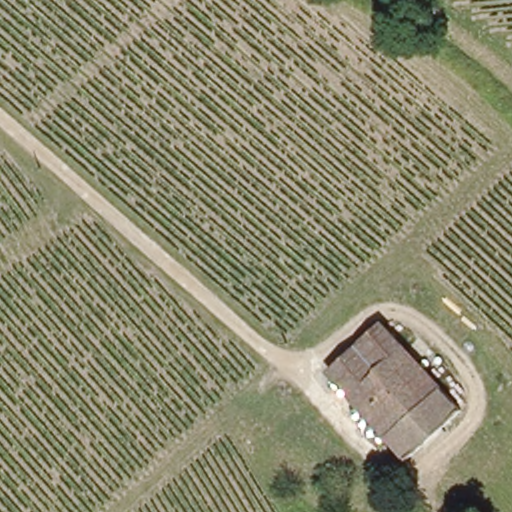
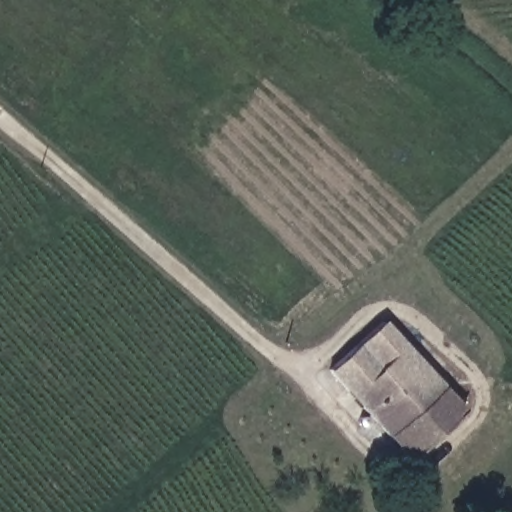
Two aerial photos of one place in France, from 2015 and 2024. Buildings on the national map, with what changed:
unchanged [(380,323),(434,380),(461,409),(406,458),(328,370),(380,323)]

